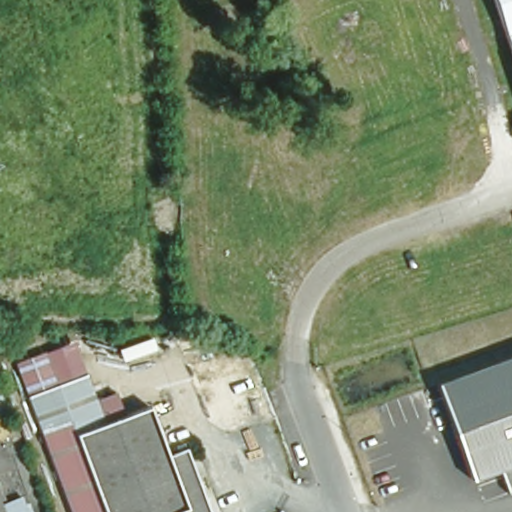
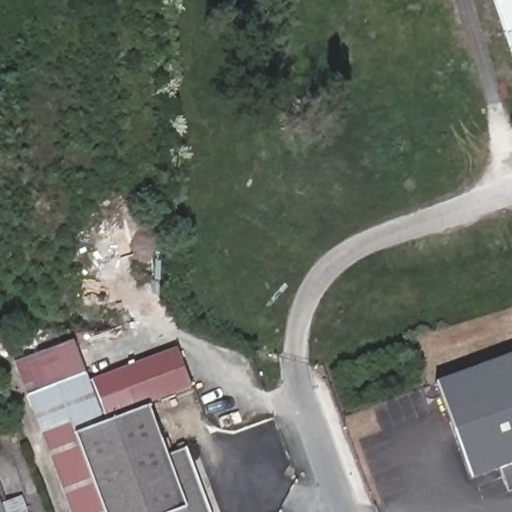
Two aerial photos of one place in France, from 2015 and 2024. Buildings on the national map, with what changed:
unchanged [(491,0),(512,0),(512,59),(491,0)]
new [(85,373),(56,383),(45,349),(73,341),(85,373)]
new [(177,347),(191,387),(143,407),(144,408),(107,422),(100,405),(89,380),(177,347)]
unchanged [(45,349),(56,383),(85,373),(107,422),(45,445),(13,361),(45,349)]
unchanged [(512,356),(512,493),(510,494),(502,471),(473,482),(437,383),(512,356)]
unchanged [(0,430),(0,394),(11,426),(0,430)]
unchanged [(162,460),(183,452),(204,512),(70,512),(46,447),(45,445),(107,422),(144,408),(162,460)]
unchanged [(0,497),(20,491),(28,512),(2,512),(0,506),(0,497)]
unchanged [(0,506),(2,512),(0,512),(0,506)]

